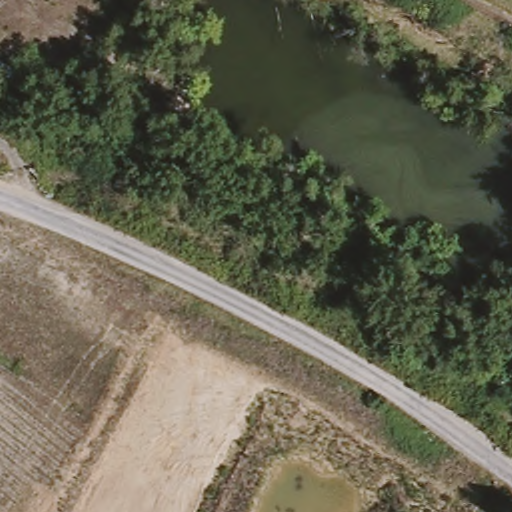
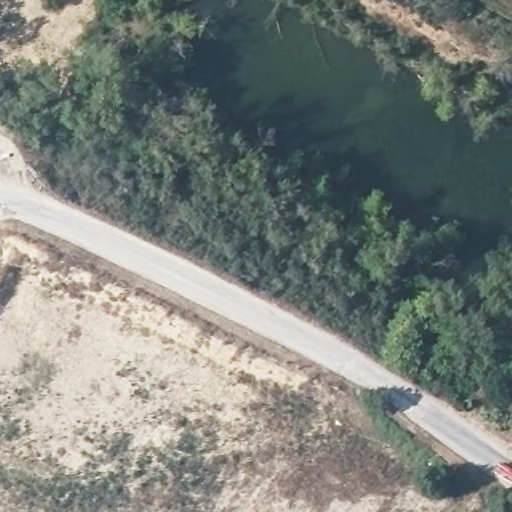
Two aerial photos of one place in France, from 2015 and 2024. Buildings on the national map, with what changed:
unchanged [(510,512),(512,510),(512,512),(510,512)]

